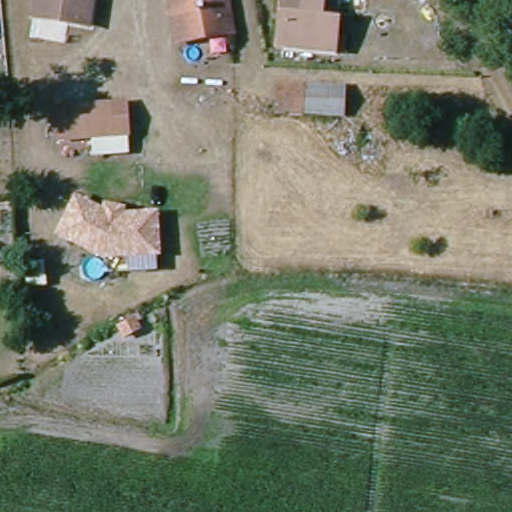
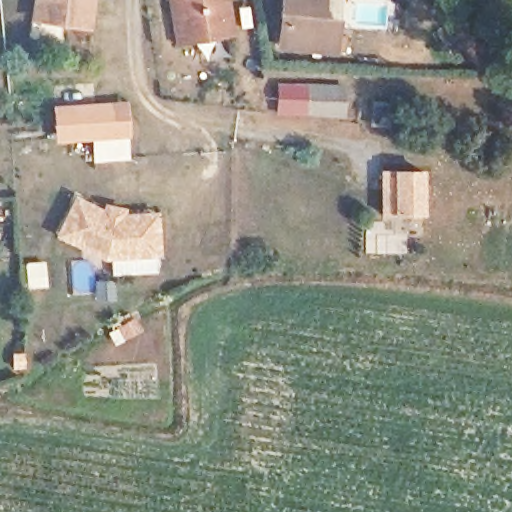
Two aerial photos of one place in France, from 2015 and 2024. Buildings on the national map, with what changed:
unchanged [(34,19),(37,0),(95,0),(91,28),(34,19)]
unchanged [(177,43),(171,0),(229,0),(235,33),(177,43)]
unchanged [(279,51),(284,0),(325,0),(323,25),(337,26),(335,58),(279,51)]
unchanged [(344,116),(278,113),(280,85),(346,89),(344,116)]
unchanged [(129,136),(59,141),(57,109),(127,104),(129,136)]
new [(425,169),(425,216),(382,217),(382,171),(425,169)]
unchanged [(110,222),(155,219),(159,256),(107,259),(57,237),(75,200),(110,222)]
new [(45,260),(47,287),(26,289),(24,262),(45,260)]

